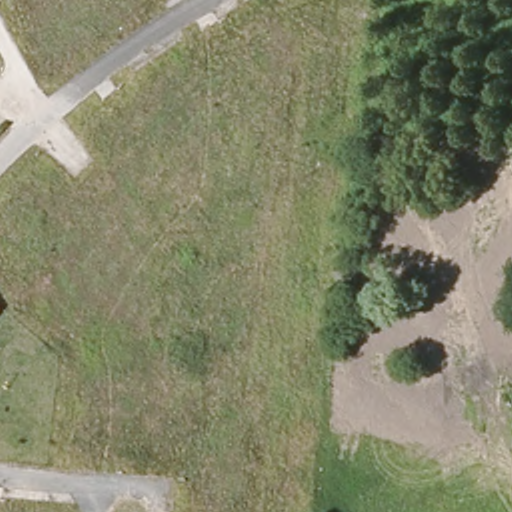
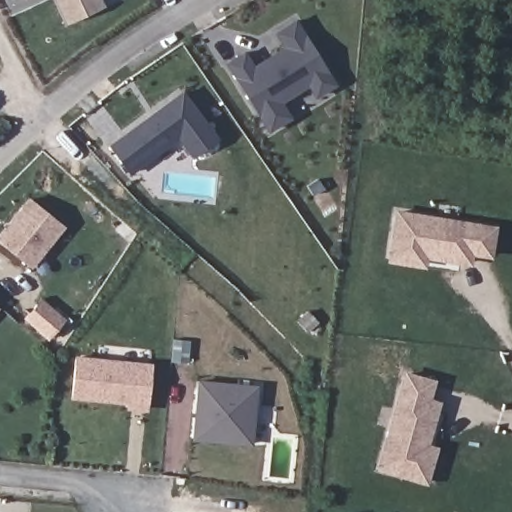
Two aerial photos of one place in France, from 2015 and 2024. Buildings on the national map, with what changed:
new [(68,23),(57,0),(100,0),(103,7),(68,23)]
new [(270,131),(258,112),(229,64),(245,54),(255,69),(263,63),(278,55),(288,49),(278,33),(297,22),(336,86),(317,97),(308,82),(295,90),(294,95),(281,103),(290,119),(270,131)]
new [(130,177),(109,147),(182,92),(218,141),(192,160),(178,142),(130,177)]
new [(31,202),(63,227),(30,269),(0,245),(0,239),(31,202)]
new [(456,262),(426,257),(425,261),(392,256),(398,214),(495,229),(490,256),(472,252),(470,263),(456,262)]
new [(79,356),(100,358),(101,346),(154,351),(148,410),(127,408),(127,406),(74,400),(79,356)]
demolished [(498,367),(512,369),(512,419),(493,417),(498,367)]
new [(433,385),(427,403),(438,406),(433,419),(425,449),(430,450),(421,482),(380,471),(407,377),(433,385)]
new [(252,446),(195,440),(201,383),(258,389),(256,407),(255,428),(252,446)]

